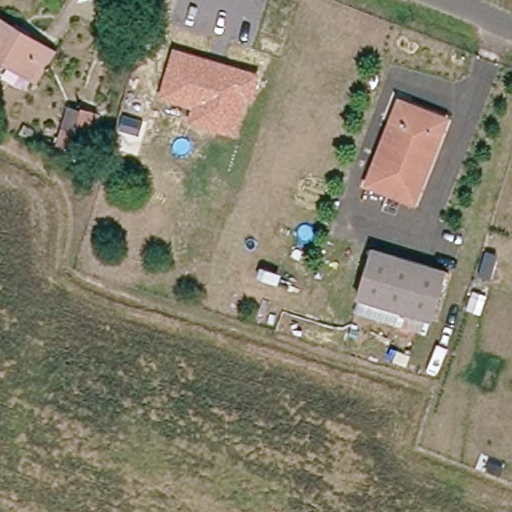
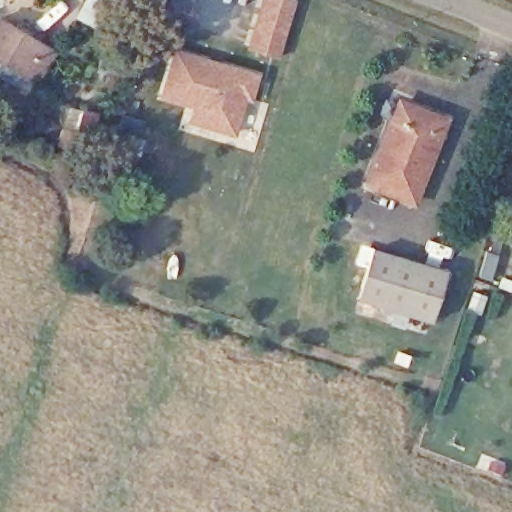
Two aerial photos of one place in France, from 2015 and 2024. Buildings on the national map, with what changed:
new [(280,59),(246,49),(261,0),(297,0),(280,59)]
unchanged [(44,84),(32,77),(0,59),(0,29),(6,18),(51,44),(62,51),(44,84)]
unchanged [(260,75),(252,104),(244,103),(234,138),(187,125),(190,107),(159,99),(173,47),(260,75)]
unchanged [(403,105),(446,124),(413,203),(370,184),(403,105)]
unchanged [(103,114),(91,155),(64,146),(70,128),(83,131),(89,109),(103,114)]
unchanged [(447,281),(432,331),(360,307),(375,257),(447,281)]

